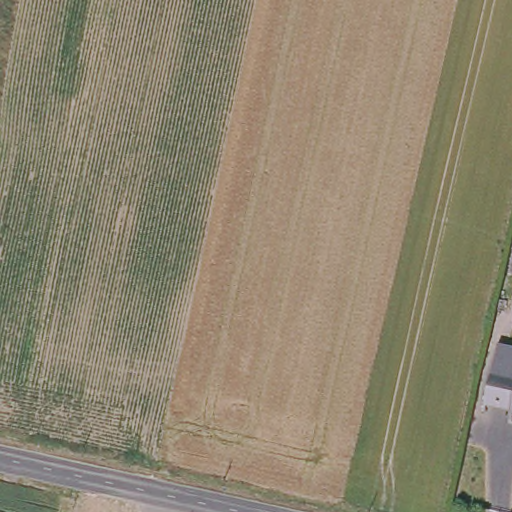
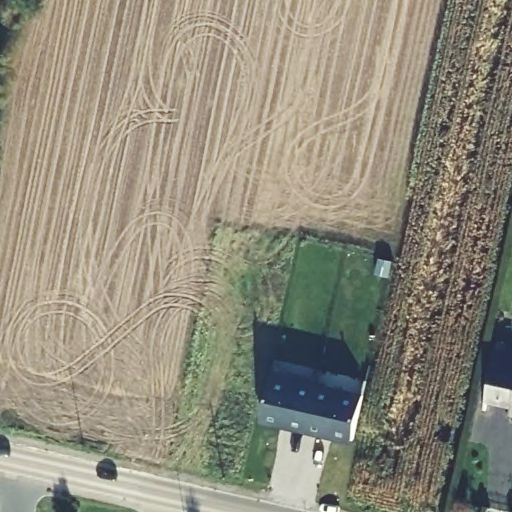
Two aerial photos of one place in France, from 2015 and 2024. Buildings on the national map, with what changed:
unchanged [(510,409),(482,403),(495,341),(512,344),(512,418),(508,417),(510,409)]
new [(272,374),(363,394),(353,439),(325,432),(324,435),(290,427),(290,425),(262,418),(272,374)]

